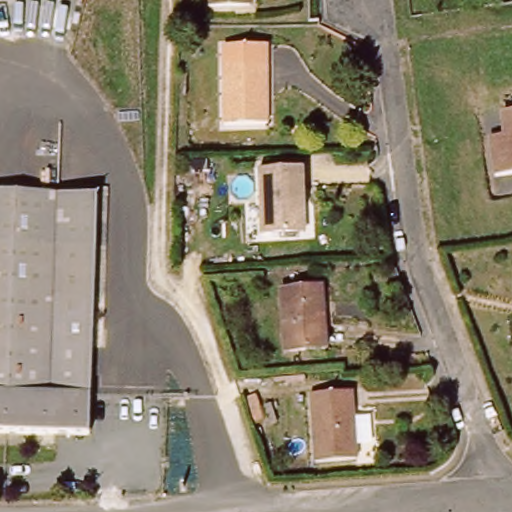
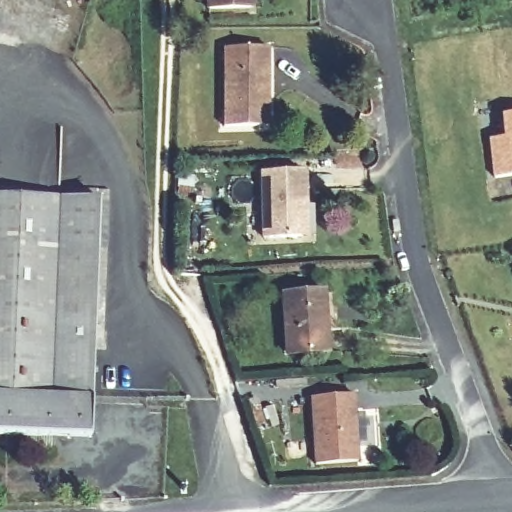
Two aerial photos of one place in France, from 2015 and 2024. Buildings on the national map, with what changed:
unchanged [(225,5),(225,0),(265,0),(265,4),(225,5)]
unchanged [(282,50),(281,114),(236,113),(237,50),(282,50)]
unchanged [(496,173),(490,135),(505,133),(502,111),(512,110),(512,171),(496,173)]
unchanged [(307,172),(307,208),(301,209),(302,235),(265,237),(262,174),(307,172)]
unchanged [(0,192),(111,195),(109,244),(0,242),(0,192)]
unchanged [(0,430),(0,242),(109,244),(102,433),(0,430)]
unchanged [(337,290),(342,355),(302,358),(295,292),(337,290)]
unchanged [(368,390),(375,457),(330,462),(327,395),(368,390)]

